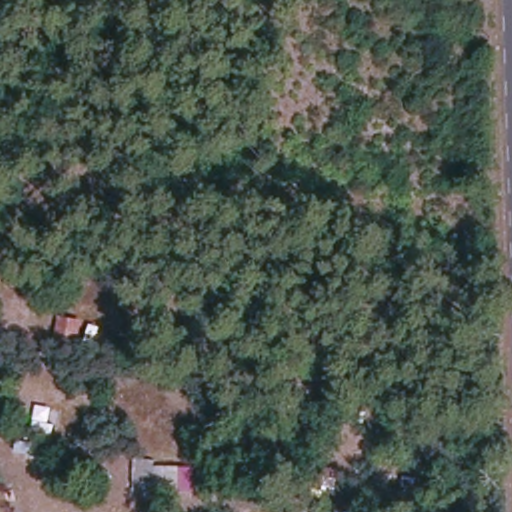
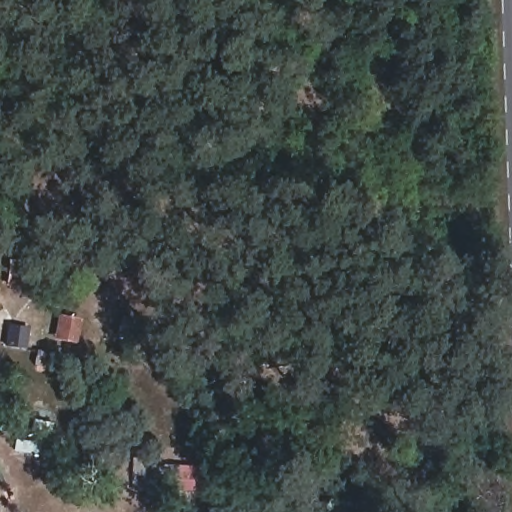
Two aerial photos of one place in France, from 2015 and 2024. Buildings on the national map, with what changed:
unchanged [(63,337),(69,315),(84,320),(78,342),(63,337)]
unchanged [(28,435),(36,406),(58,411),(52,438),(28,435)]
unchanged [(129,485),(135,461),(156,460),(157,466),(183,470),(181,495),(129,485)]

